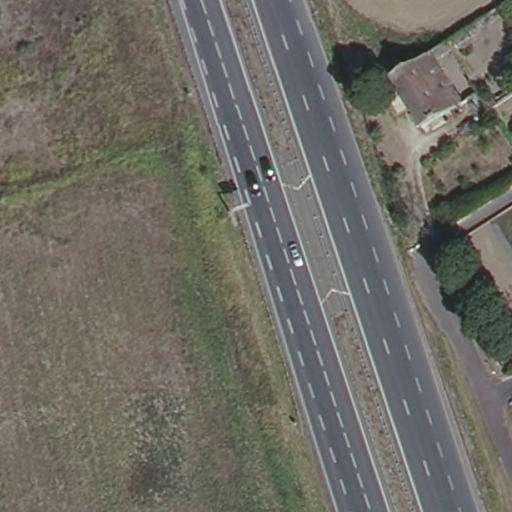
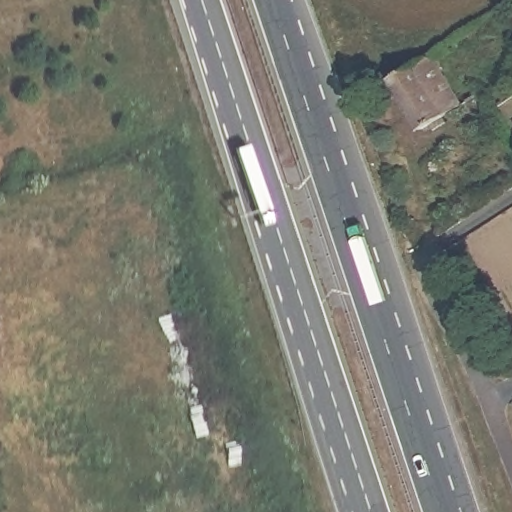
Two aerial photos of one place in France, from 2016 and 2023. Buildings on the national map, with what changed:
unchanged [(445,55),(432,63),(455,99),(414,127),(383,79),(436,44),(445,55)]
unchanged [(512,85),(512,102),(511,103),(503,92),(512,85)]

